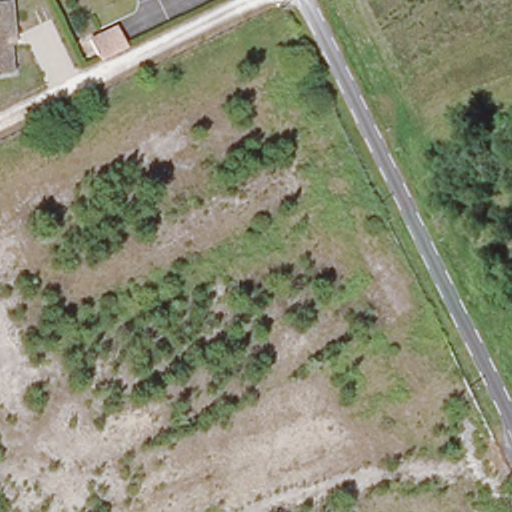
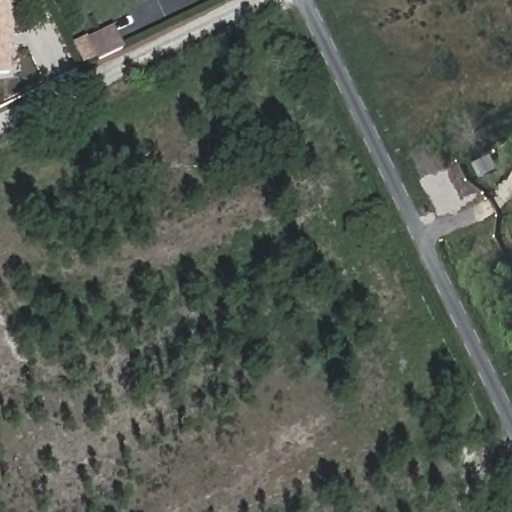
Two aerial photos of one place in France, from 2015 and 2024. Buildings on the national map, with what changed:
unchanged [(7,76),(0,77),(0,5),(5,4),(7,37),(9,48),(4,49),(7,76)]
unchanged [(95,41),(110,34),(118,52),(104,59),(96,63),(87,45),(95,41)]

